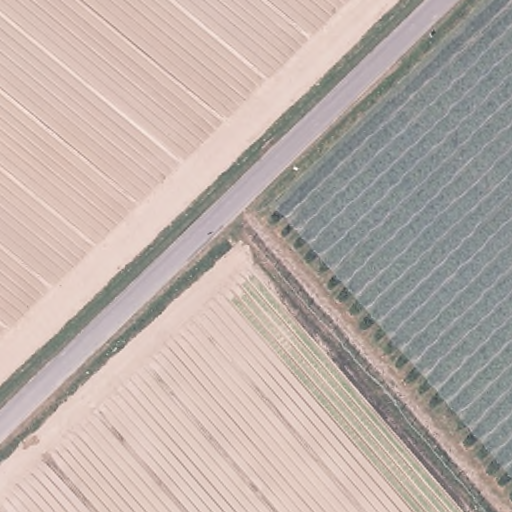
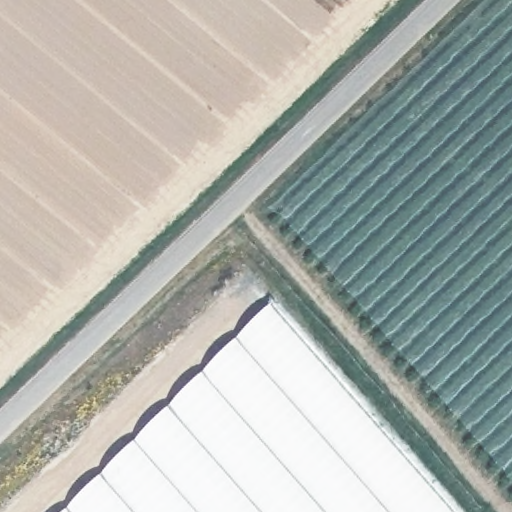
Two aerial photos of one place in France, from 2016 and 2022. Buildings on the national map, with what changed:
new [(272,306),(454,512),(66,512),(272,306)]

